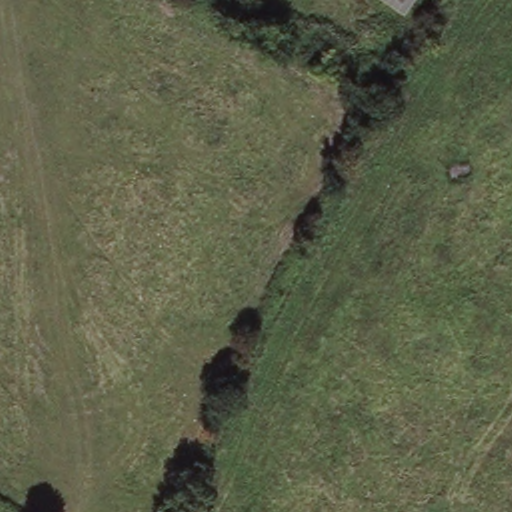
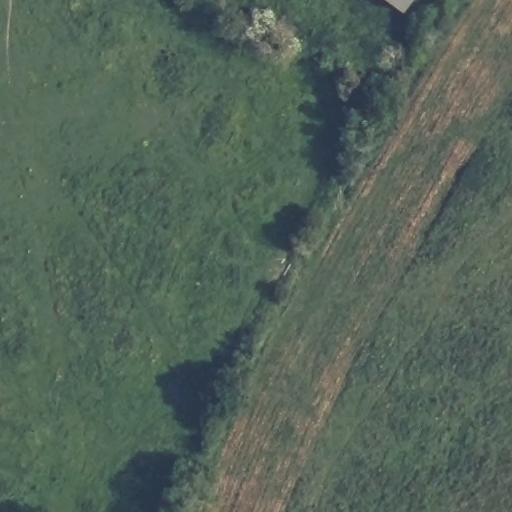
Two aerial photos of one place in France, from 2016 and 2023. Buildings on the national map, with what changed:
unchanged [(393,0),(422,0),(412,14),(393,0)]

